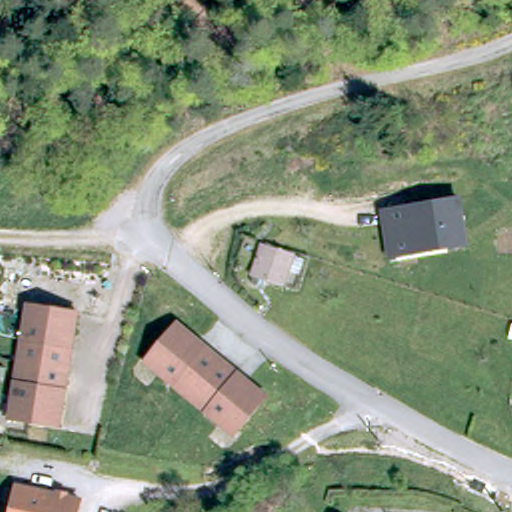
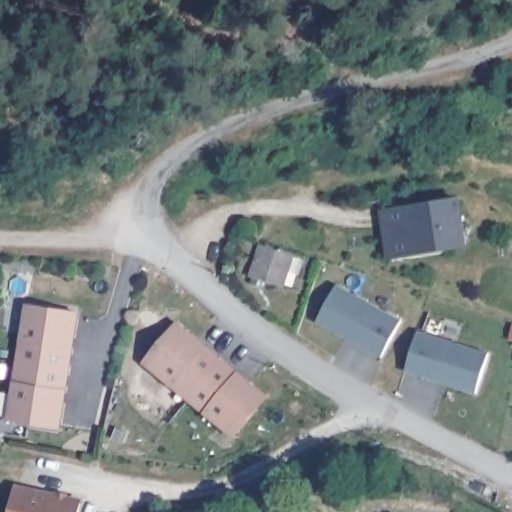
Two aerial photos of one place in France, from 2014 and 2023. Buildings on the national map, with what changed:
unchanged [(460,196),(468,246),(390,260),(380,210),(460,196)]
unchanged [(249,276),(261,239),(290,248),(282,277),(262,271),(258,279),(249,276)]
new [(383,357),(317,321),(338,283),(404,321),(383,357)]
unchanged [(16,362),(25,305),(74,312),(65,370),(16,362)]
unchanged [(505,338),(508,324),(512,325),(512,340),(505,338)]
unchanged [(146,363),(177,325),(222,361),(190,400),(146,363)]
new [(490,352),(478,392),(408,372),(419,330),(490,352)]
unchanged [(235,435),(190,400),(222,361),(267,396),(235,435)]
unchanged [(56,426),(7,418),(16,362),(65,370),(56,426)]
unchanged [(15,488),(78,503),(76,512),(8,512),(15,488)]

